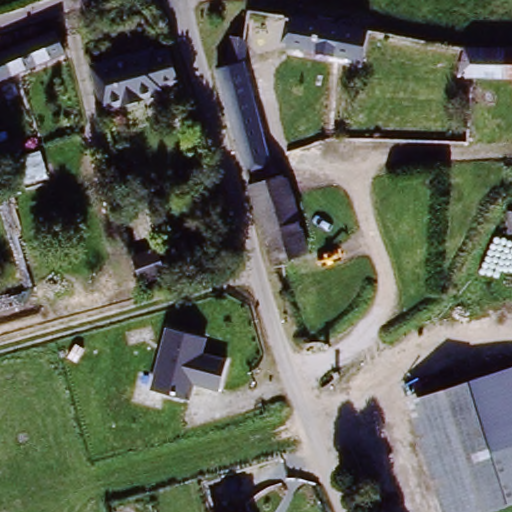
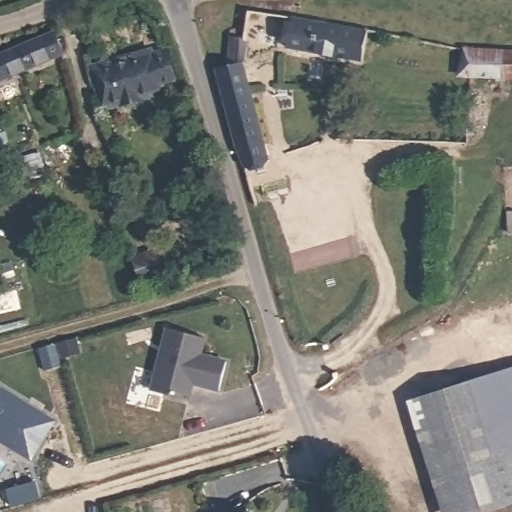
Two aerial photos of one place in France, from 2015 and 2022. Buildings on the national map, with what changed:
unchanged [(354,27),(350,58),(281,53),(285,17),(354,27)]
unchanged [(57,63),(0,79),(0,51),(50,37),(57,63)]
unchanged [(214,71),(225,66),(229,38),(249,41),(244,65),(272,160),(243,174),(214,71)]
unchanged [(482,48),(512,49),(512,76),(480,75),(480,83),(461,82),(465,47),(473,48),(482,48)]
unchanged [(180,88),(181,89),(176,89),(177,92),(162,93),(162,99),(137,104),(137,108),(123,110),(122,107),(100,111),(93,69),(112,65),(134,61),(132,59),(154,56),(155,59),(155,60),(169,57),(171,63),(175,62),(180,88)]
unchanged [(305,254),(280,262),(255,179),(281,171),(305,254)]
unchanged [(510,221),(512,221),(512,241),(510,221)]
unchanged [(154,266),(129,276),(122,252),(147,245),(154,266)]
unchanged [(207,341),(204,354),(227,362),(220,393),(194,387),(190,402),(150,392),(165,328),(207,341)]
unchanged [(512,445),(492,452),(472,382),(512,371),(512,445)]
unchanged [(443,512),(408,400),(472,382),(492,452),(512,445),(512,506),(493,512),(443,512)]
new [(57,421),(34,459),(0,438),(0,386),(57,421)]

